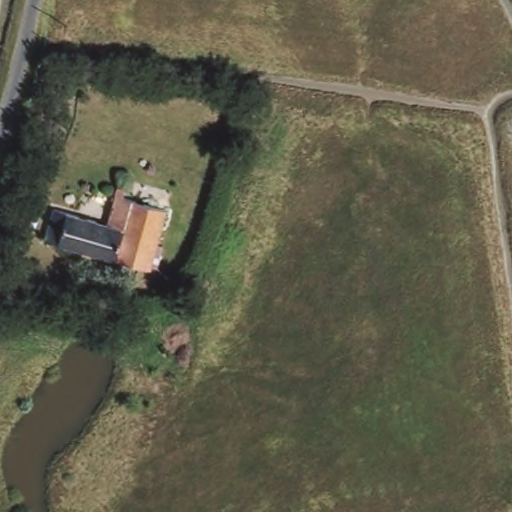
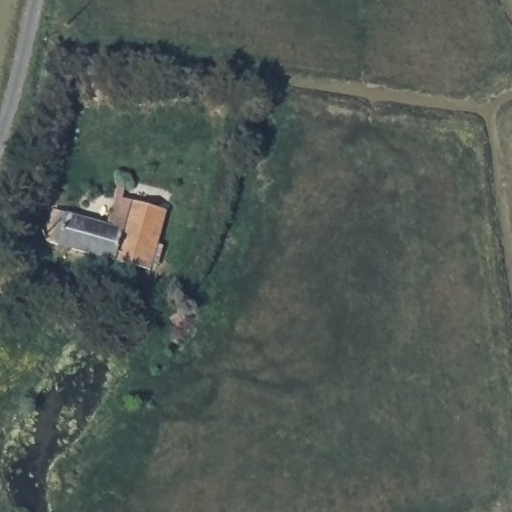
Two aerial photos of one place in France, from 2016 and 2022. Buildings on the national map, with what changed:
unchanged [(132,212),(165,220),(151,275),(45,247),(53,215),(113,228),(119,192),(134,196),(132,212)]

